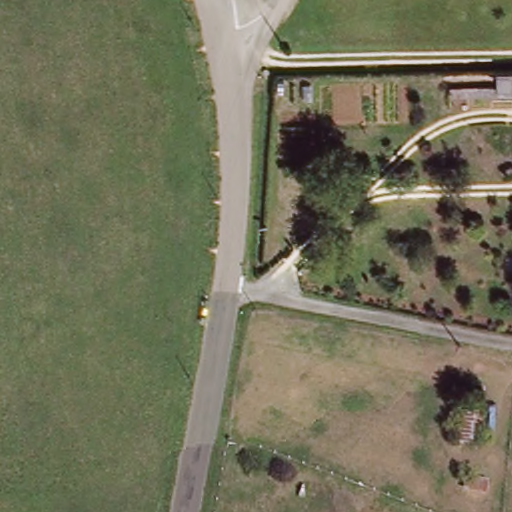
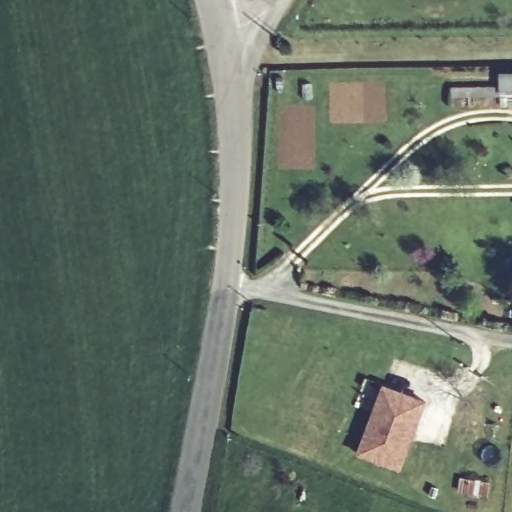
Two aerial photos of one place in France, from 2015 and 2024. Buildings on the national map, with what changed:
unchanged [(512,75),(512,97),(496,96),(496,75),(512,75)]
new [(429,402),(404,469),(358,453),(383,386),(429,402)]

